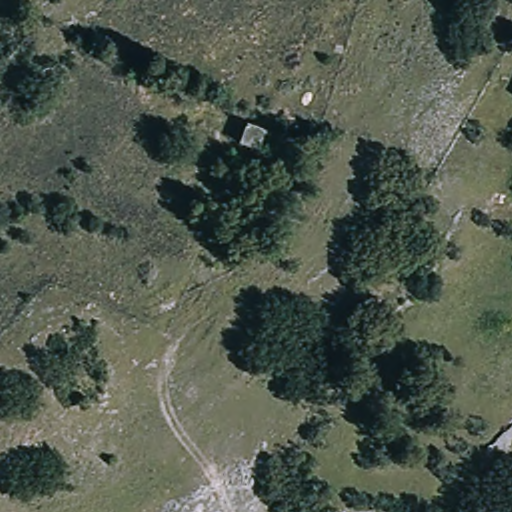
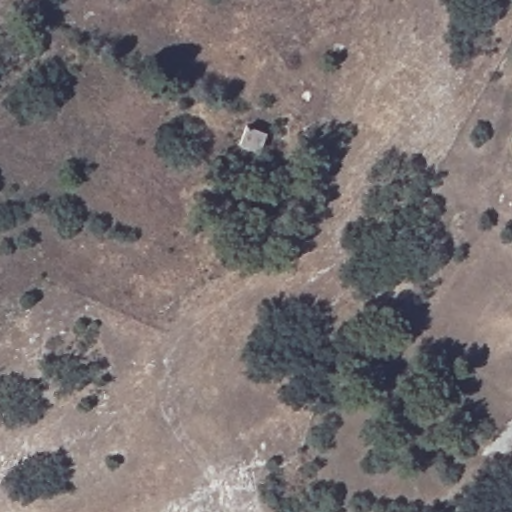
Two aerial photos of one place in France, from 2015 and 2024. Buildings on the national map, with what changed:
unchanged [(265,132),(258,150),(240,144),(247,126),(265,132)]

